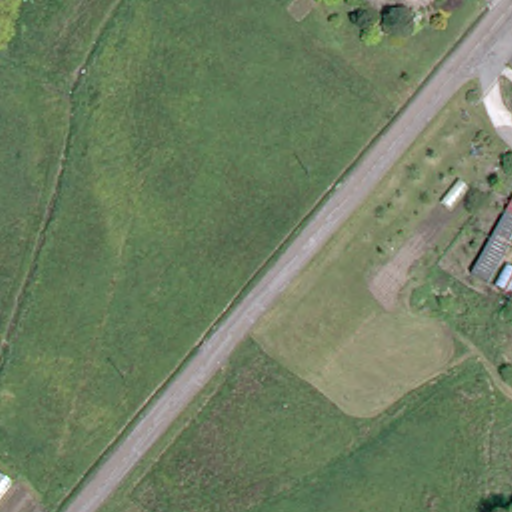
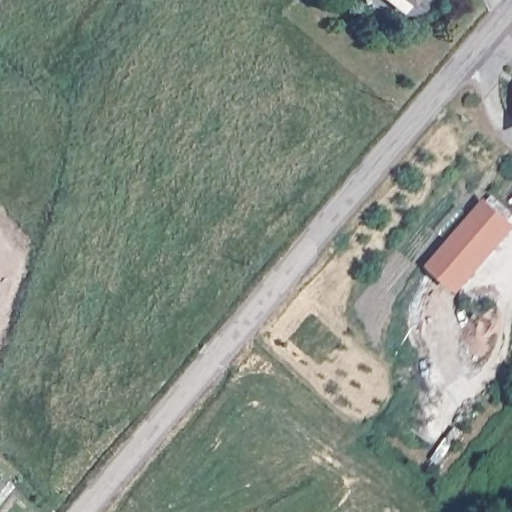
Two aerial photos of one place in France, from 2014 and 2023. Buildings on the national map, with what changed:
new [(512,221),(512,237),(463,295),(428,265),(486,198),(512,221)]

